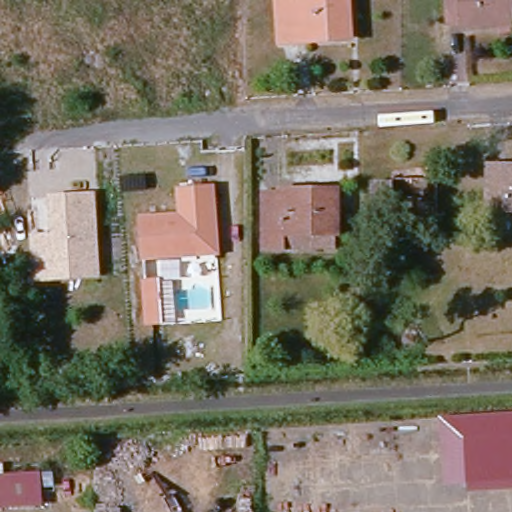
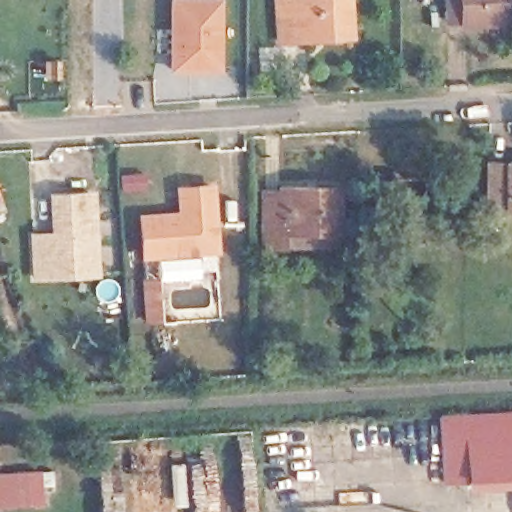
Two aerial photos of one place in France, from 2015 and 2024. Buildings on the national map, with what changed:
new [(170,0),(222,0),(222,72),(170,72),(170,0)]
unchanged [(279,42),(277,0),(350,0),(352,37),(279,42)]
unchanged [(462,27),(462,22),(448,24),(447,0),(512,0),(512,25),(462,27)]
unchanged [(488,210),(488,166),(507,166),(512,167),(512,210),(488,210)]
unchanged [(199,254),(143,257),(140,219),(181,216),(179,190),(211,188),(214,215),(216,252),(199,254)]
unchanged [(278,253),(259,252),(259,199),(274,199),(274,196),(312,196),(332,195),(332,237),(328,237),(328,251),(278,253)]
unchanged [(59,279),(36,280),(34,240),(55,238),(52,200),(92,196),(96,259),(97,276),(59,279)]
new [(157,281),(160,325),(147,325),(145,282),(157,281)]
unchanged [(512,437),(512,494),(468,496),(465,441),(512,437)]
unchanged [(0,507),(0,477),(38,474),(40,503),(0,507)]

